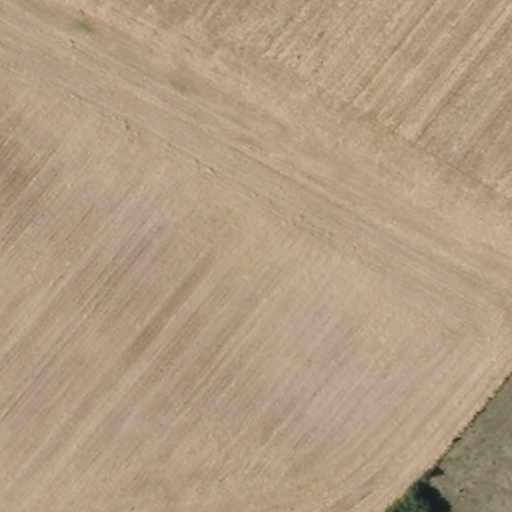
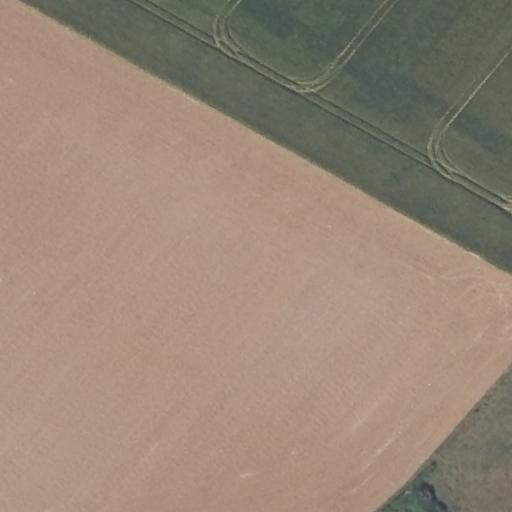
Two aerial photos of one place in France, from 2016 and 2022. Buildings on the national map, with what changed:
unchanged [(390,512),(388,512),(389,511),(390,512)]

